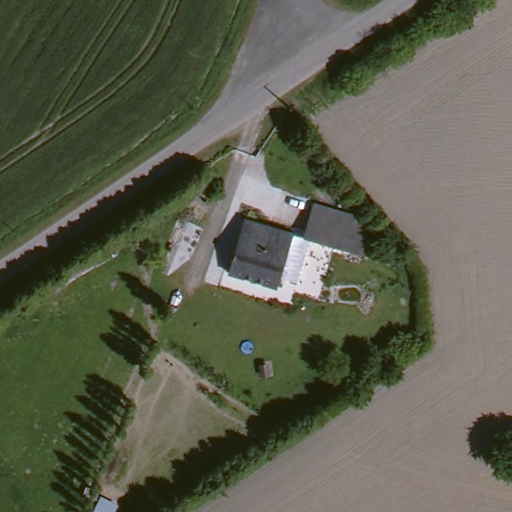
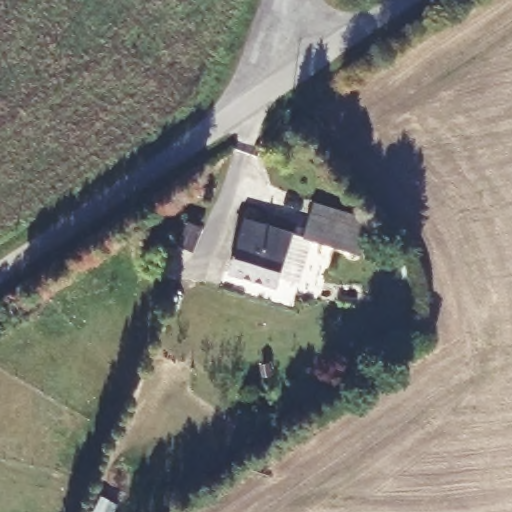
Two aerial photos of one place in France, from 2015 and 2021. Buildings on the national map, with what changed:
unchanged [(368,231),(362,254),(300,238),(308,215),(368,231)]
unchanged [(272,287),(225,269),(245,219),(291,237),(272,287)]

